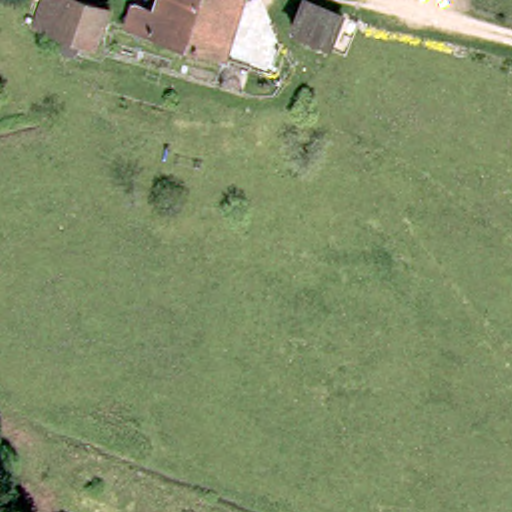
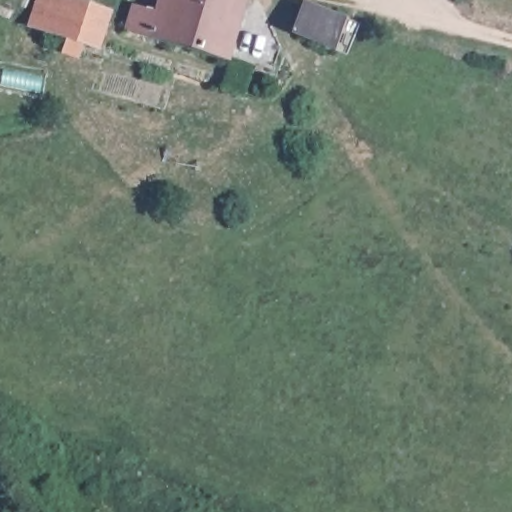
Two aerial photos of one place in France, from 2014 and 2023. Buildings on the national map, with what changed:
unchanged [(86,30),(84,40),(67,35),(69,26),(36,16),(40,0),(78,0),(114,10),(106,36),(86,30)]
unchanged [(127,0),(132,0),(151,5),(152,0),(246,0),(228,52),(119,24),(127,0)]
unchanged [(332,47),(292,31),(305,1),(343,16),(332,47)]

